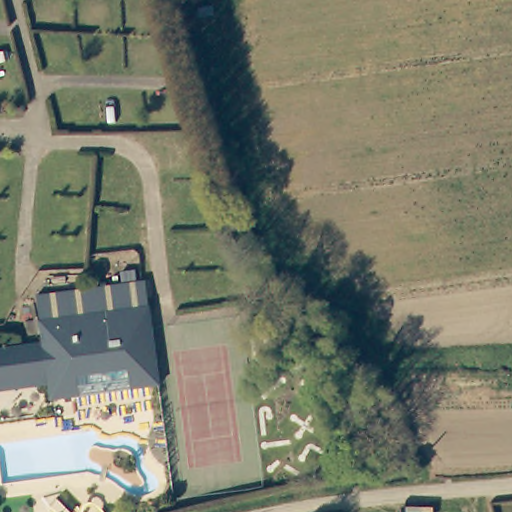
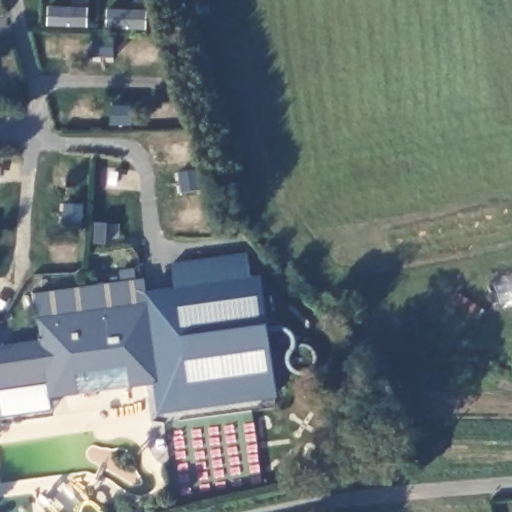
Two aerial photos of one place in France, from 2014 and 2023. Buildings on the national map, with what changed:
new [(143,314),(141,293),(146,292),(175,289),(170,264),(248,253),(252,278),(262,278),(278,399),(158,414),(153,382),(151,382),(143,314)]
unchanged [(48,330),(33,333),(28,292),(139,275),(143,314),(48,330)]
unchanged [(33,333),(48,330),(143,314),(151,382),(44,398),(40,378),(0,383),(0,344),(35,340),(33,333)]

